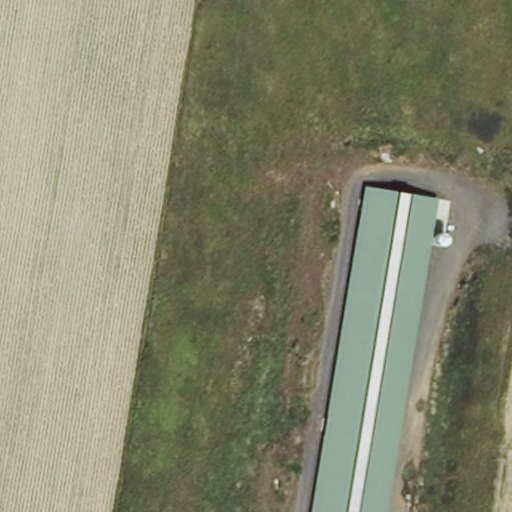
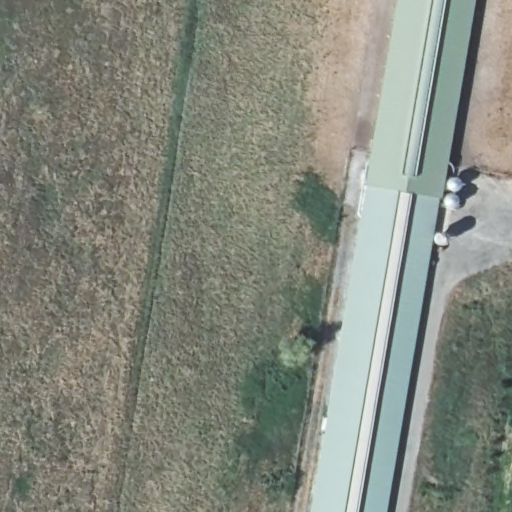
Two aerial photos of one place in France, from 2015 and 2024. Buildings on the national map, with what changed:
new [(440,199),(366,188),(363,187),(395,0),(474,0),(440,199)]
unchanged [(440,199),(436,231),(443,232),(445,235),(447,239),(444,244),(439,246),(433,246),(388,512),(311,512),(366,188),(440,199)]

